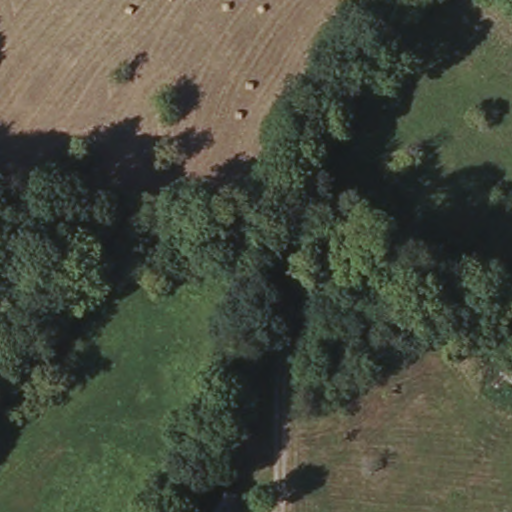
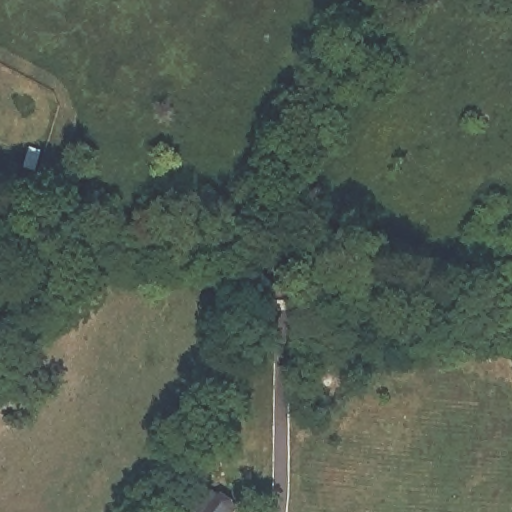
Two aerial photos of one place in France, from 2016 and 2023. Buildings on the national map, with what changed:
unchanged [(238,508),(235,512),(195,512),(222,489),(238,508)]

